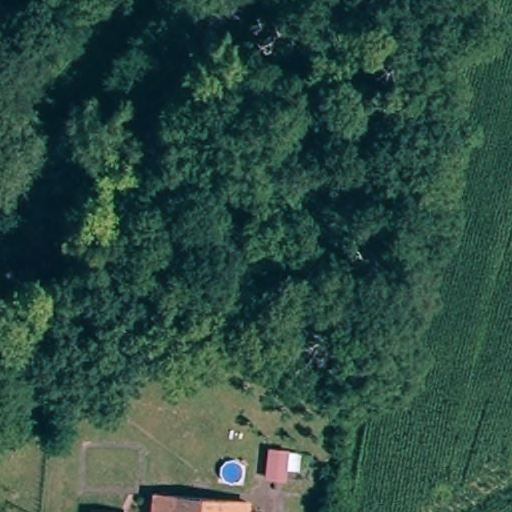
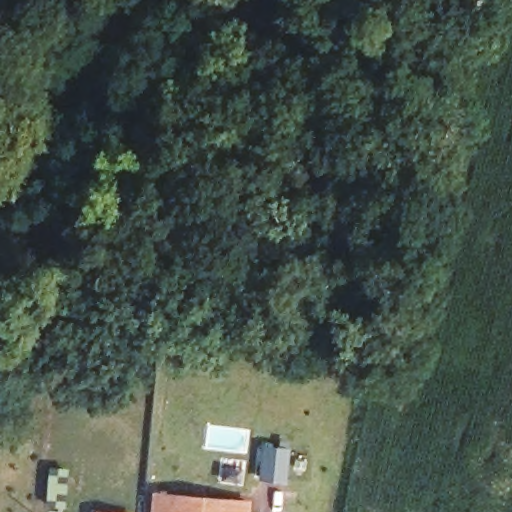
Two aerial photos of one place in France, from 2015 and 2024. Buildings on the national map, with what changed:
unchanged [(232,502),(250,505),(250,512),(157,512),(159,493),(232,502)]

